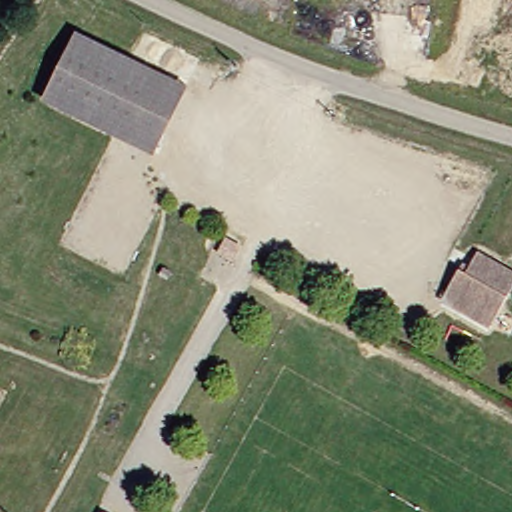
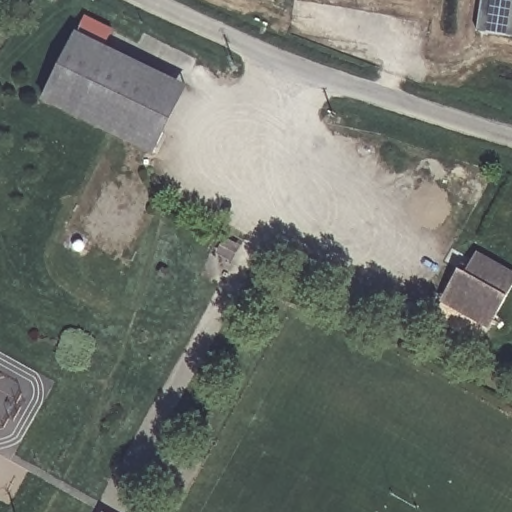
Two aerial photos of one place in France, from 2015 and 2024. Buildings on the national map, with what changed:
new [(481,0),(512,0),(512,37),(477,32),(481,0)]
unchanged [(160,127),(150,147),(46,93),(79,26),(158,67),(135,114),(160,127)]
unchanged [(158,67),(184,80),(160,127),(135,114),(158,67)]
new [(85,248),(84,250),(82,252),(79,252),(77,252),(75,250),(73,248),(73,246),(73,243),(75,241),(77,240),(79,239),(82,240),(84,241),(85,243),(86,246),(85,248)]
unchanged [(467,271),(477,251),(512,270),(512,285),(492,323),(444,297),(460,267),(467,271)]
unchanged [(107,512),(101,512),(103,509),(107,512)]
demolished [(110,512),(107,512),(108,511),(110,512)]

